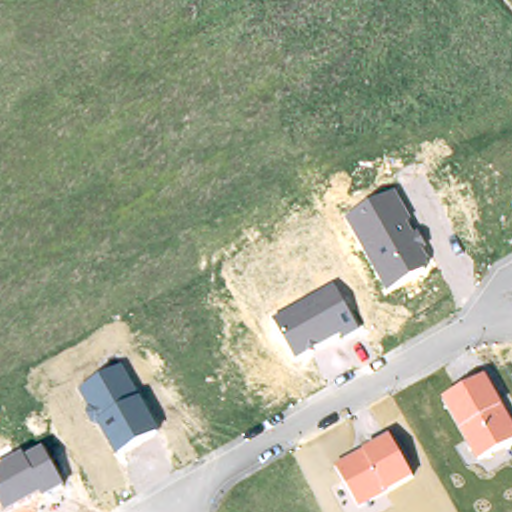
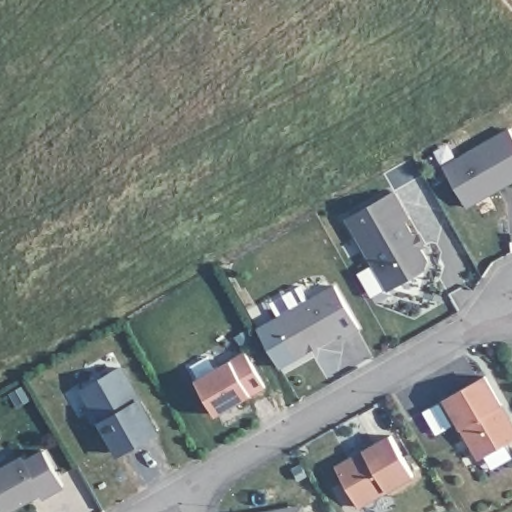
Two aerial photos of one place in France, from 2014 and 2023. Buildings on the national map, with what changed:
new [(512,136),(512,183),(467,208),(443,165),(507,128),(512,136)]
unchanged [(428,260),(423,271),(387,291),(346,219),(394,190),(411,219),(408,221),(414,232),(418,231),(428,248),(423,251),(428,260)]
unchanged [(296,359),(273,320),(335,283),(360,329),(345,338),(341,333),(296,359)]
new [(265,387),(251,395),(216,416),(195,378),(230,360),(243,351),(265,387)]
unchanged [(93,425),(86,412),(89,407),(78,388),(122,366),(142,398),(160,432),(117,457),(102,428),(93,425)]
unchanged [(461,429),(443,398),(485,375),(502,405),(512,421),(512,441),(478,460),(461,429)]
unchanged [(390,435),(413,477),(386,492),(359,508),(335,467),(363,451),(390,435)]
unchanged [(42,495),(11,512),(6,512),(0,501),(0,493),(2,492),(0,489),(0,468),(24,455),(26,457),(43,448),(66,487),(45,498),(42,495)]
new [(303,504),(305,512),(256,512),(303,504)]

